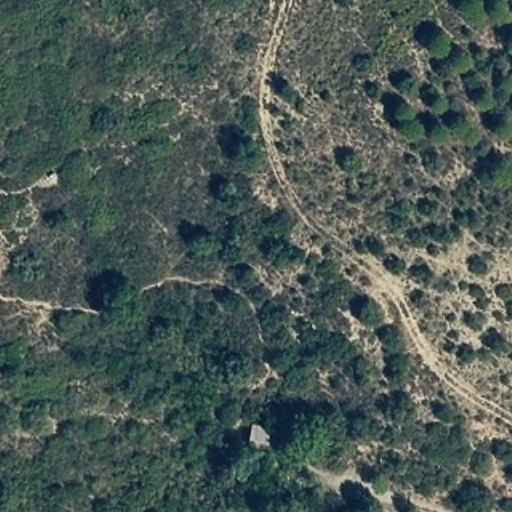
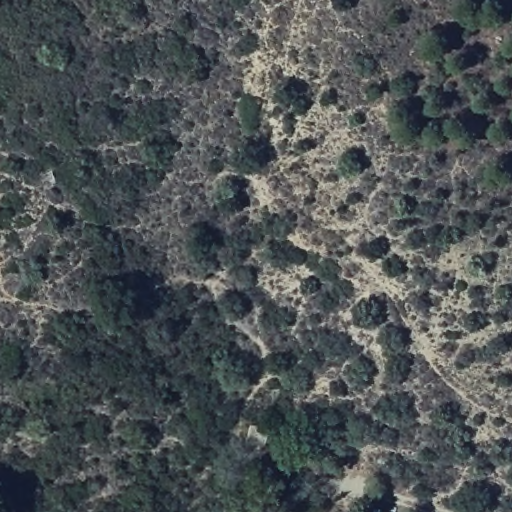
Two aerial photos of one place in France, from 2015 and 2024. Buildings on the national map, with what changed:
unchanged [(256,431),(263,445),(248,453),(241,438),(256,431)]

